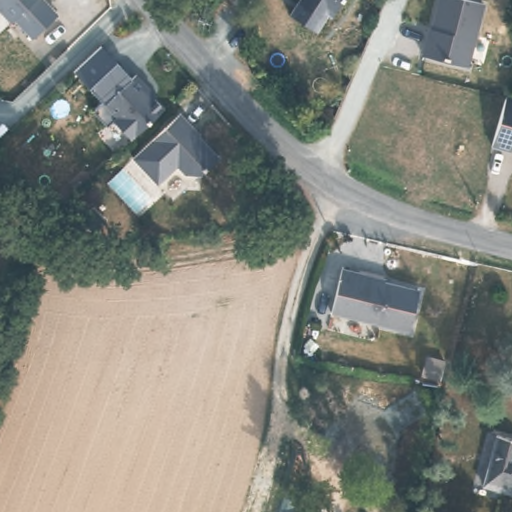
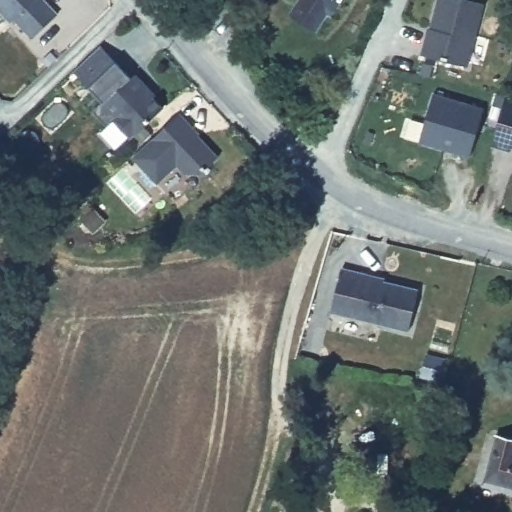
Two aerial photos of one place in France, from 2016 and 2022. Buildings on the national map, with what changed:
unchanged [(57,12),(33,35),(14,15),(11,19),(0,6),(0,0),(46,0),(57,12)]
unchanged [(333,16),(329,13),(327,15),(328,16),(316,30),(291,11),(299,0),(345,0),(333,16)]
unchanged [(488,7),(470,69),(425,56),(432,35),(434,36),(445,0),(466,0),(488,7)]
unchanged [(131,140),(114,121),(117,117),(94,92),(122,67),(133,79),(137,75),(149,89),(147,91),(164,110),(131,140)]
new [(420,142),(435,94),(484,108),(471,156),(420,142)]
unchanged [(512,149),(509,149),(508,152),(490,147),(505,97),(512,99),(512,149)]
unchanged [(180,110),(192,123),(188,126),(193,132),(197,132),(218,154),(200,171),(185,171),(177,162),(157,181),(133,154),(180,110)]
demolished [(465,161),(443,154),(455,116),(476,123),(465,161)]
unchanged [(405,328),(327,312),(337,268),(412,285),(405,328)]
unchanged [(512,493),(483,486),(496,433),(512,437),(512,493)]

